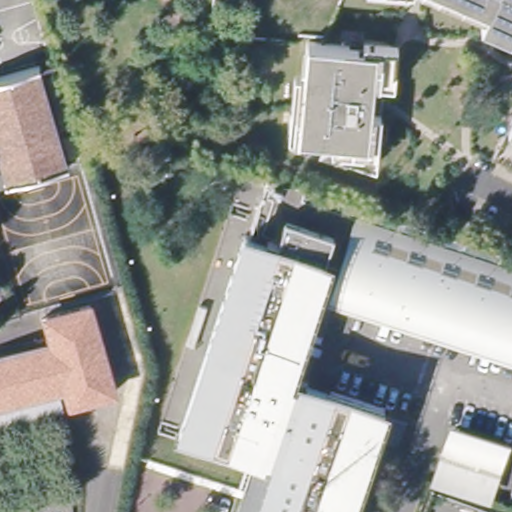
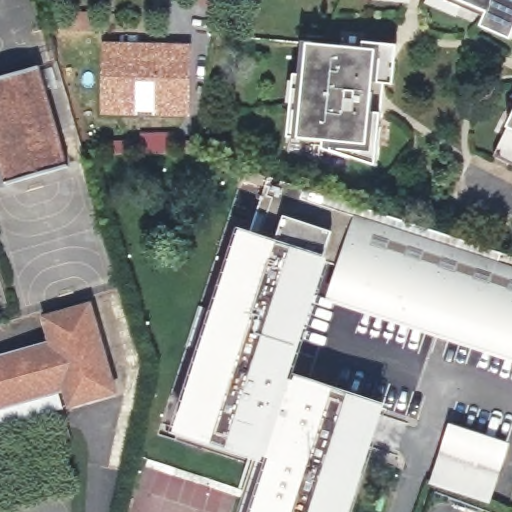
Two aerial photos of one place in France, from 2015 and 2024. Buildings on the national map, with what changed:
unchanged [(512,0),(512,26),(450,0),(512,0)]
new [(101,40),(133,40),(193,43),(190,116),(143,114),(100,114),(101,40)]
unchanged [(362,49),(362,43),(389,44),(373,83),(370,113),(380,114),(376,165),(331,151),(332,143),(288,139),(291,106),(293,81),(303,82),(306,44),(362,49)]
unchanged [(71,163),(1,184),(0,182),(0,79),(42,67),(71,163)]
unchanged [(512,122),(512,161),(497,154),(512,122)]
new [(171,132),(172,154),(141,154),(141,133),(171,132)]
unchanged [(344,272),(318,264),(281,379),(375,410),(342,512),(258,512),(273,466),(265,464),(263,468),(252,464),(254,460),(173,434),(235,239),(239,240),(255,192),(230,184),(233,172),(512,262),(512,356),(335,299),(344,272)]
unchanged [(65,385),(0,403),(0,357),(52,342),(46,317),(90,304),(114,389),(70,403),(65,385)]
unchanged [(180,346),(193,306),(200,308),(187,348),(180,346)]
unchanged [(439,480),(457,431),(505,449),(487,498),(439,480)]

